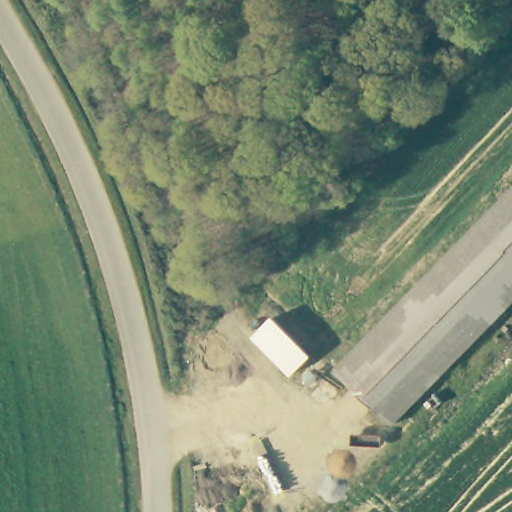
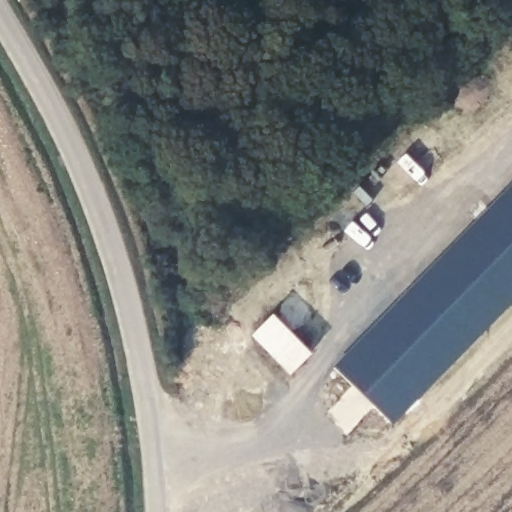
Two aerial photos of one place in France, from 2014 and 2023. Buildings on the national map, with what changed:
unchanged [(512,192),(512,303),(389,431),(334,377),(512,192)]
unchanged [(293,375),(254,339),(273,318),(313,356),(293,375)]

